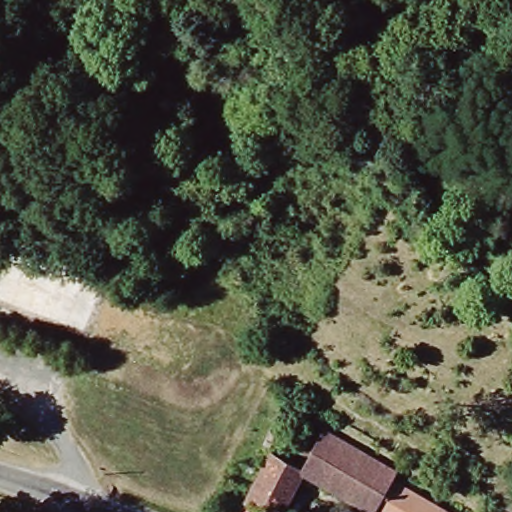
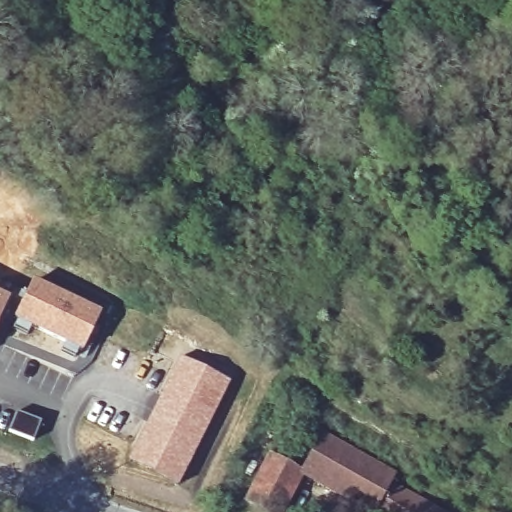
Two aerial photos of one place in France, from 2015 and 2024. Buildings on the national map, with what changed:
demolished [(84,335),(0,304),(0,283),(9,257),(100,291),(84,335)]
new [(34,280),(102,312),(83,351),(14,318),(34,280)]
new [(0,317),(0,292),(10,297),(0,317)]
new [(180,355),(230,380),(177,486),(128,461),(180,355)]
new [(17,415),(41,425),(33,445),(9,435),(17,415)]
unchanged [(430,512),(358,512),(301,480),(285,512),(252,512),(247,510),(271,462),(301,478),(323,439),(397,480),(391,490),(430,512)]

